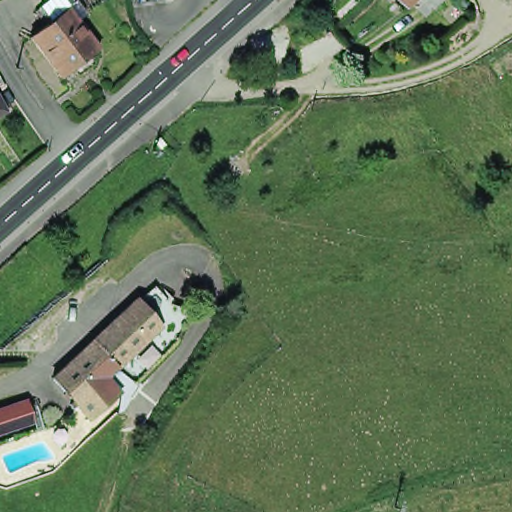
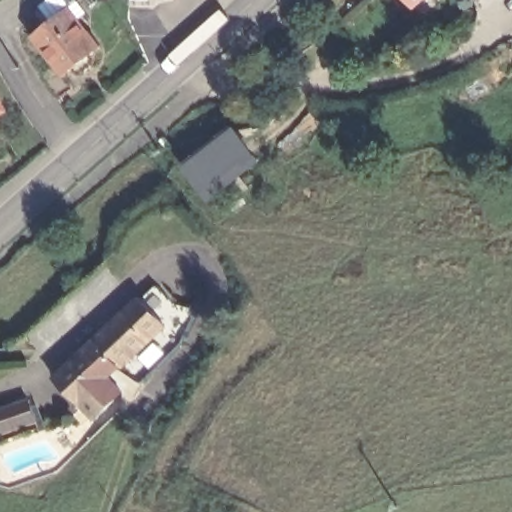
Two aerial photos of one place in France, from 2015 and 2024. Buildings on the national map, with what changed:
unchanged [(97,63),(83,75),(78,69),(66,77),(36,37),(51,26),(40,11),(55,0),(80,0),(90,14),(82,20),(104,49),(93,57),(97,63)]
unchanged [(409,0),(421,0),(414,6),(409,0)]
demolished [(427,21),(450,0),(455,0),(467,13),(441,37),(427,21)]
unchanged [(3,110),(0,112),(0,104),(3,110)]
new [(256,162),(205,204),(176,167),(228,126),(256,162)]
unchanged [(163,332),(109,383),(83,356),(138,302),(140,305),(162,330),(163,332)]
unchanged [(109,383),(121,397),(91,425),(53,383),(81,357),(83,356),(109,383)]
unchanged [(40,423),(1,436),(0,430),(0,411),(33,401),(40,423)]

